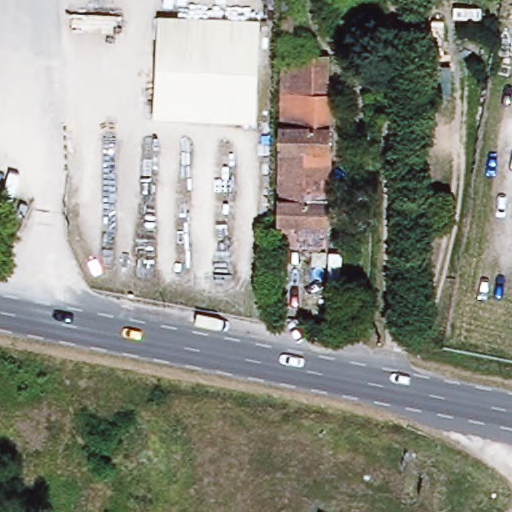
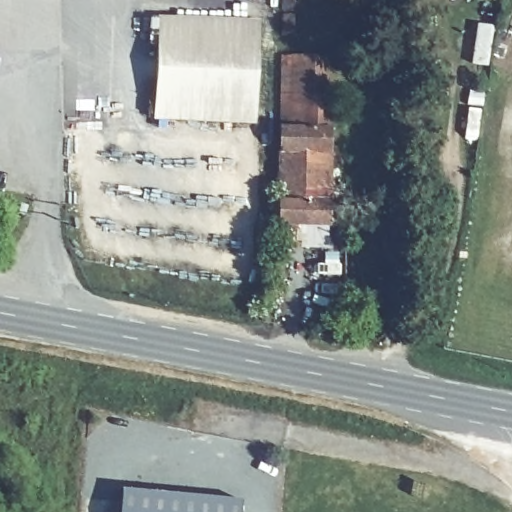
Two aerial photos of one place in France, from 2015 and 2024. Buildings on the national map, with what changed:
unchanged [(157,20),(165,21),(164,10),(183,11),(184,15),(212,15),(211,23),(258,26),(255,126),(155,122),(157,20)]
unchanged [(292,35),(282,35),(283,16),(292,16),(292,35)]
unchanged [(325,108),(329,108),(328,175),(303,175),(303,162),(280,162),(282,67),(326,68),(325,108)]
unchanged [(327,235),(279,234),(280,162),(303,162),(303,175),(328,175),(327,235)]
new [(240,512),(117,512),(120,489),(240,501),(240,512)]

